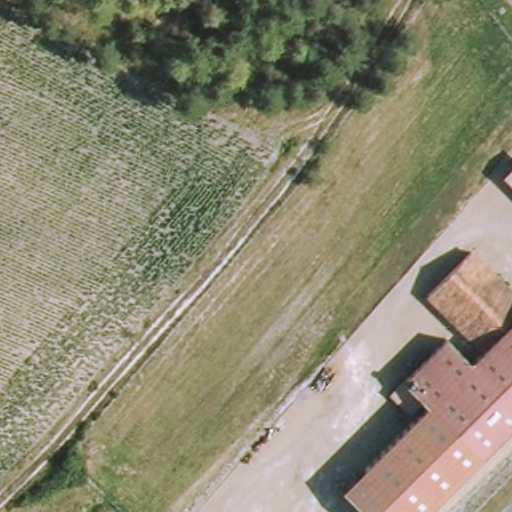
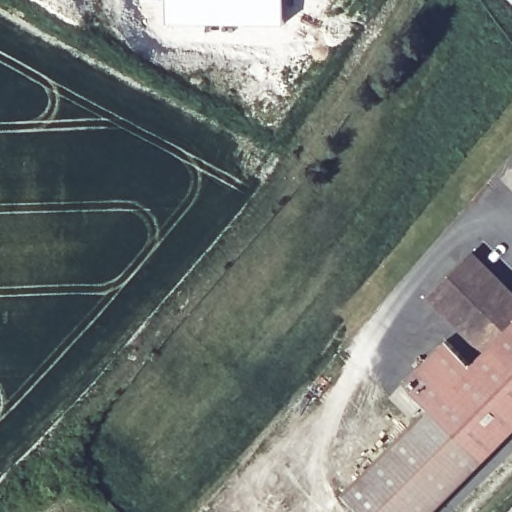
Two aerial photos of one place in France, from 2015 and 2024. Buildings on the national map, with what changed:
new [(164,26),(164,0),(285,0),(284,25),(164,26)]
new [(512,169),(512,186),(503,178),(512,169)]
unchanged [(512,428),(479,461),(478,460),(426,409),(402,385),(444,342),(468,365),(482,352),(427,296),(470,254),(512,295),(512,428)]
unchanged [(426,409),(479,461),(432,512),(362,512),(343,492),(426,409)]

